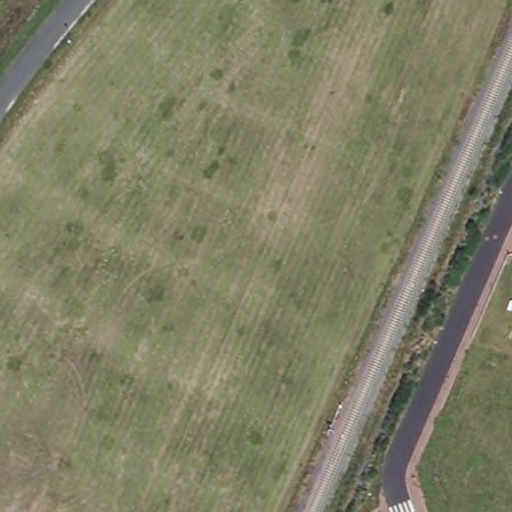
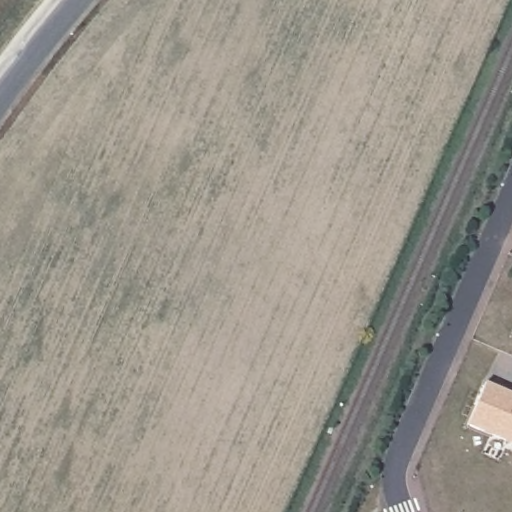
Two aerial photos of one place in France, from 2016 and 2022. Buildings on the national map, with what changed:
new [(485,383),(512,395),(512,445),(467,425),(485,383)]

